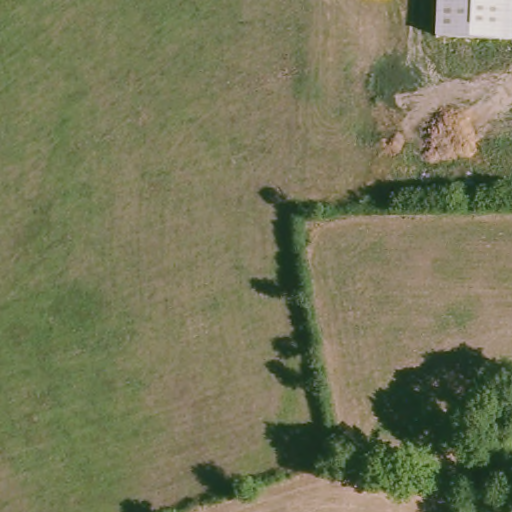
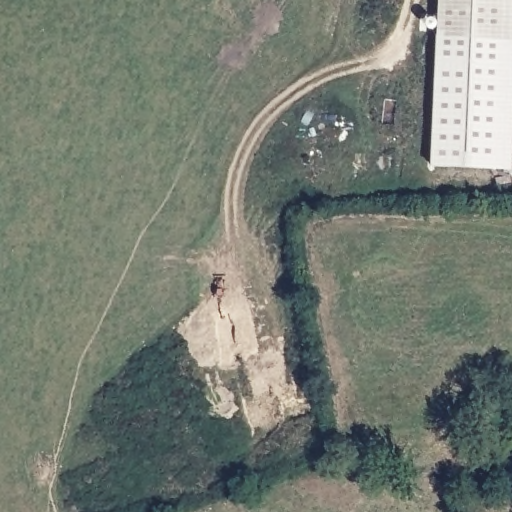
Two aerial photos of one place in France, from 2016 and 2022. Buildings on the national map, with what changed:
unchanged [(438,0),(512,0),(512,43),(436,40),(438,0)]
new [(430,166),(436,40),(512,43),(512,113),(508,169),(430,166)]

